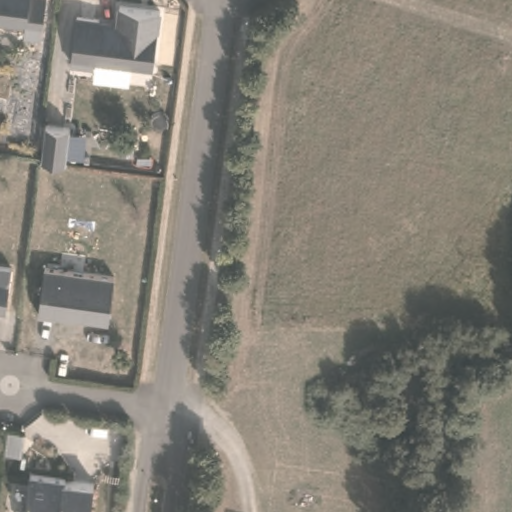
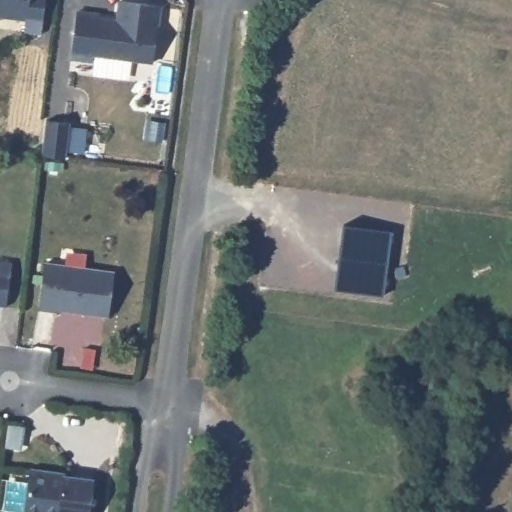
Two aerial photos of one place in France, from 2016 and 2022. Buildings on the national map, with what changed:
unchanged [(24,33),(26,22),(0,19),(0,0),(46,0),(42,35),(24,33)]
unchanged [(152,58),(93,51),(93,57),(71,55),(77,8),(99,10),(99,15),(117,17),(119,0),(146,0),(160,1),(152,58)]
new [(45,121),(70,125),(65,159),(41,156),(45,121)]
new [(334,289),(342,224),(390,231),(382,295),(334,289)]
unchanged [(0,263),(11,263),(6,307),(0,307),(0,263)]
unchanged [(44,264),(113,273),(107,318),(56,311),(55,313),(37,311),(44,264)]
unchanged [(24,512),(30,470),(65,474),(65,477),(94,481),(90,512),(24,512)]

